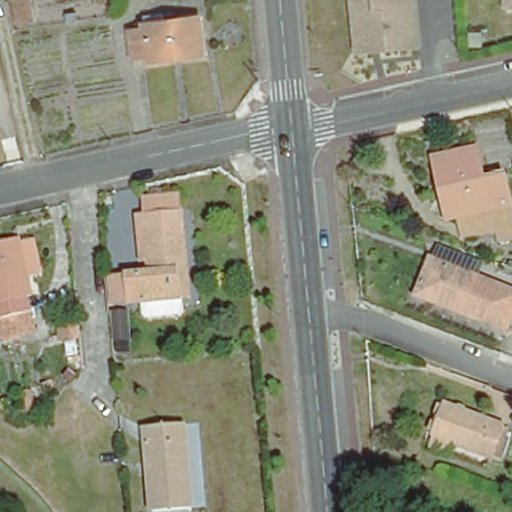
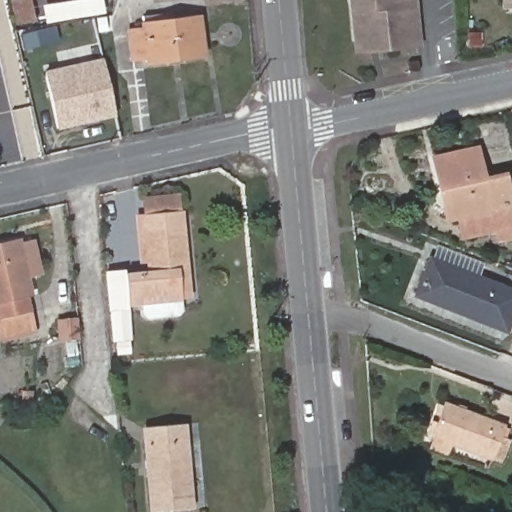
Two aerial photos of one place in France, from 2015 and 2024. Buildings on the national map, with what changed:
unchanged [(35,19),(17,24),(12,0),(31,0),(35,19)]
unchanged [(415,47),(374,51),(374,41),(353,43),(349,0),(410,0),(415,47)]
unchanged [(199,60),(143,66),(142,62),(127,64),(124,35),(138,33),(138,29),(137,20),(156,18),(157,27),(195,22),(199,60)]
unchanged [(482,33),(481,48),(468,48),(469,33),(482,33)]
new [(106,60),(118,115),(61,128),(48,73),(106,60)]
unchanged [(499,236),(497,224),(466,229),(462,211),(457,212),(449,214),(443,183),(436,154),(479,146),(484,175),(507,171),(512,195),(512,233),(499,236)]
unchanged [(181,295),(182,306),(178,312),(148,315),(143,310),(142,299),(153,297),(150,267),(143,194),(178,191),(185,263),(189,294),(181,295)]
unchanged [(35,242),(42,273),(28,277),(32,296),(26,298),(34,333),(0,341),(0,245),(19,240),(20,245),(35,242)]
unchanged [(512,294),(512,309),(504,329),(415,295),(428,262),(512,294)]
unchanged [(142,299),(114,301),(111,270),(150,267),(153,297),(142,299)]
unchanged [(77,331),(77,333),(59,334),(58,319),(76,318),(77,331)]
unchanged [(23,391),(32,391),(32,412),(23,412),(23,391)]
unchanged [(428,448),(432,437),(444,405),(502,426),(506,428),(502,439),(507,441),(499,461),(490,458),(448,443),(444,455),(428,448)]
unchanged [(152,512),(144,429),(183,425),(191,509),(152,512)]

